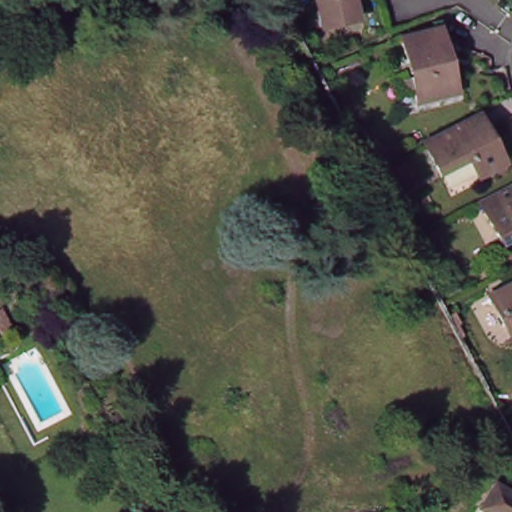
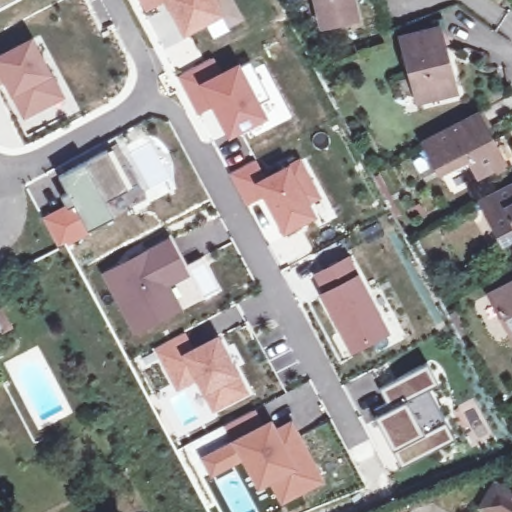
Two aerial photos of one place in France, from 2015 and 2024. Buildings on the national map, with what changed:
new [(12,0),(0,7),(0,0),(12,0)]
new [(162,0),(146,9),(141,0),(162,0)]
new [(184,33),(166,0),(212,0),(220,14),(184,33)]
unchanged [(310,0),(347,0),(349,9),(350,16),(334,21),(316,26),(315,19),(310,0)]
unchanged [(406,61),(400,36),(439,26),(444,44),(437,53),(440,68),(450,73),(455,91),(415,101),(410,76),(414,75),(410,59),(406,61)]
new [(33,38),(42,53),(37,56),(52,81),(47,84),(55,100),(29,114),(7,77),(0,81),(0,55),(33,38)]
new [(197,112),(177,76),(212,58),(221,76),(251,60),(272,95),(259,103),(265,114),(231,132),(215,102),(197,112)]
unchanged [(503,161),(479,174),(470,155),(442,170),(425,141),(434,136),(477,113),(503,161)]
new [(62,196),(68,193),(59,177),(119,145),(149,201),(59,249),(44,220),(67,209),(62,196)]
new [(245,165),(255,184),(291,165),(310,201),(299,207),(305,219),(285,230),(265,193),(245,204),(230,173),(245,165)]
unchanged [(480,203),(512,186),(512,237),(503,242),(480,203)]
new [(170,236),(190,274),(170,286),(182,308),(135,336),(100,273),(170,236)]
new [(391,333),(352,356),(318,294),(322,292),(312,274),(347,254),(391,333)]
unchanged [(488,294),(512,281),(512,338),(507,328),(488,294)]
unchanged [(0,326),(0,310),(4,308),(13,327),(3,332),(0,326)]
new [(192,350),(217,337),(246,391),(214,408),(197,377),(178,387),(157,347),(183,332),(192,350)]
new [(382,403),(375,388),(423,362),(435,382),(422,390),(440,425),(424,433),(432,447),(399,464),(370,409),(382,403)]
new [(233,444),(224,427),(252,410),(267,434),(287,422),(320,478),(279,503),(267,480),(257,486),(241,457),(211,474),(204,458),(233,444)]
unchanged [(495,481),(512,491),(512,512),(491,512),(480,506),(495,481)]

